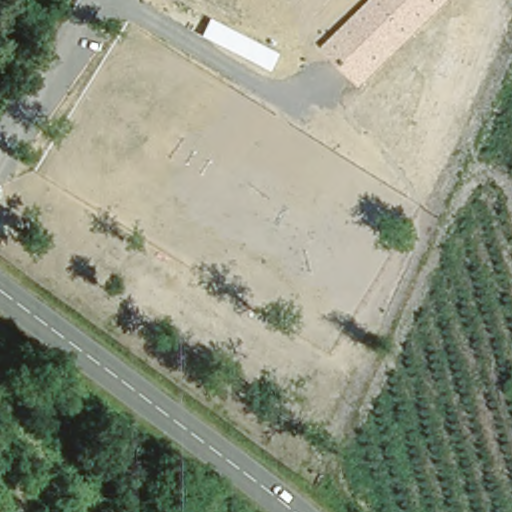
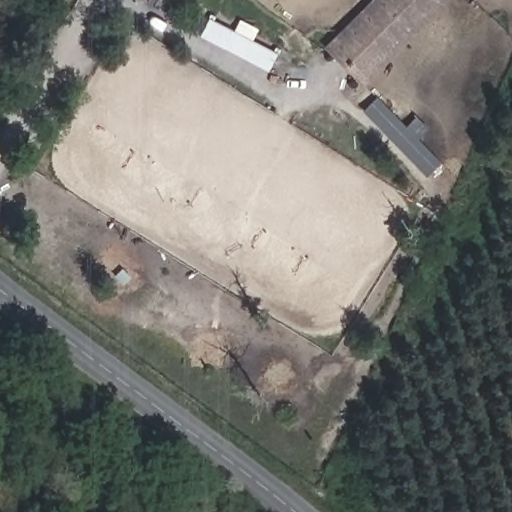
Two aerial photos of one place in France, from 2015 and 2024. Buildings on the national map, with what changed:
unchanged [(322,47),(370,0),(450,0),(361,86),(322,47)]
unchanged [(268,71),(200,35),(208,20),(277,55),(268,71)]
new [(424,177),(362,110),(377,97),(438,164),(424,177)]

